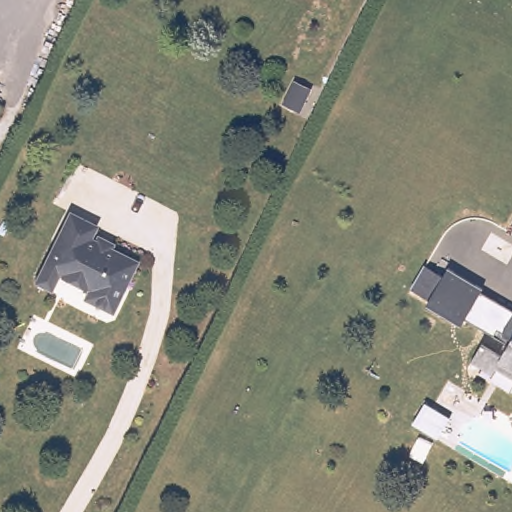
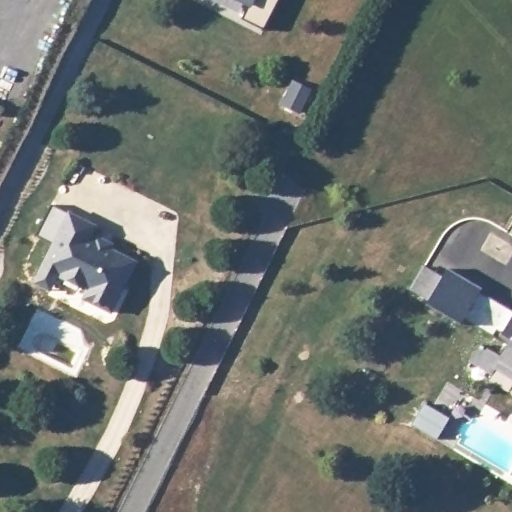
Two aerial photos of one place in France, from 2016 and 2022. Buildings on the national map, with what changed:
new [(245,20),(251,6),(238,0),(278,0),(265,29),(245,20)]
unchanged [(35,285),(42,269),(70,215),(96,229),(90,241),(95,244),(97,239),(113,247),(111,252),(136,265),(111,315),(84,301),(88,292),(58,277),(50,292),(35,285)]
unchanged [(501,357),(507,345),(462,318),(460,322),(425,301),(428,297),(411,287),(425,263),(442,274),(447,266),(481,287),(479,290),(512,310),(512,377),(495,368),(491,375),(470,363),(480,345),(501,357)]

